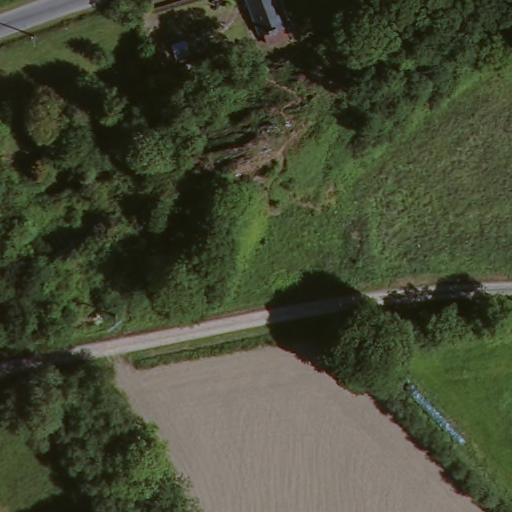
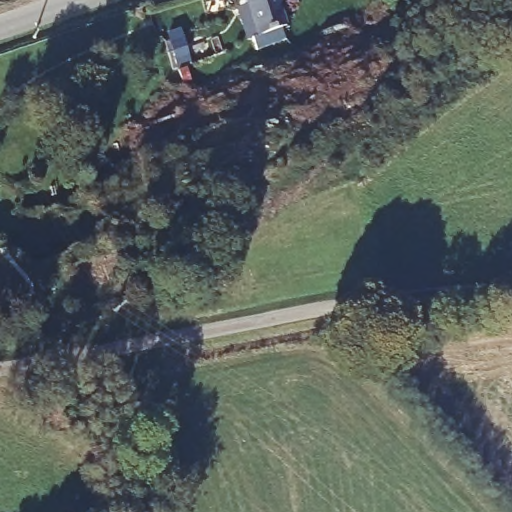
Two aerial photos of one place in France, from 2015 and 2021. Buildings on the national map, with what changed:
unchanged [(257,38),(244,0),(277,0),(286,28),(257,38)]

